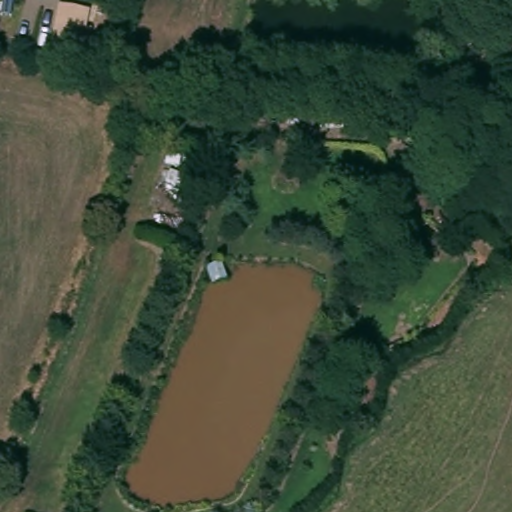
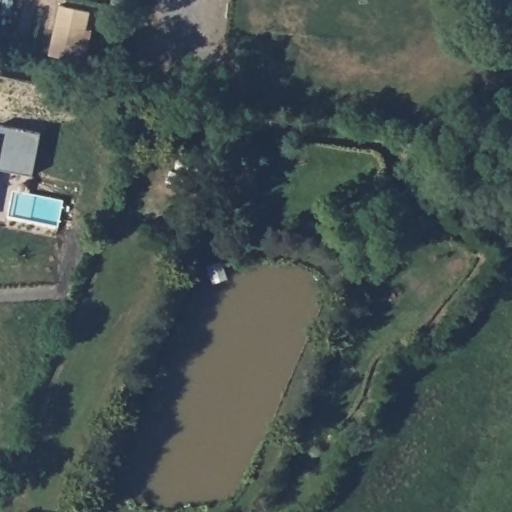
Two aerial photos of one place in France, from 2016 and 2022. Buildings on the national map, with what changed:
new [(2,123),(41,131),(34,173),(0,167),(0,132),(2,123)]

